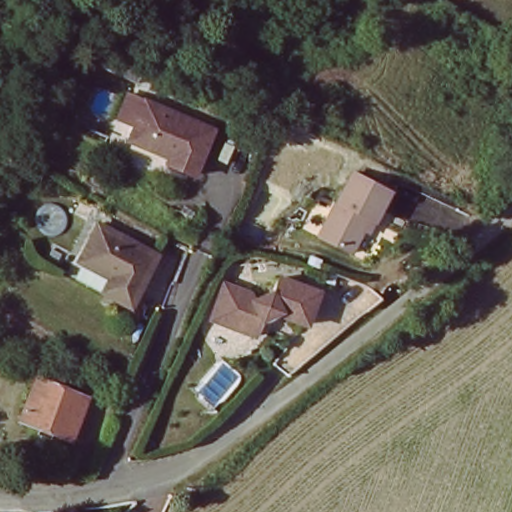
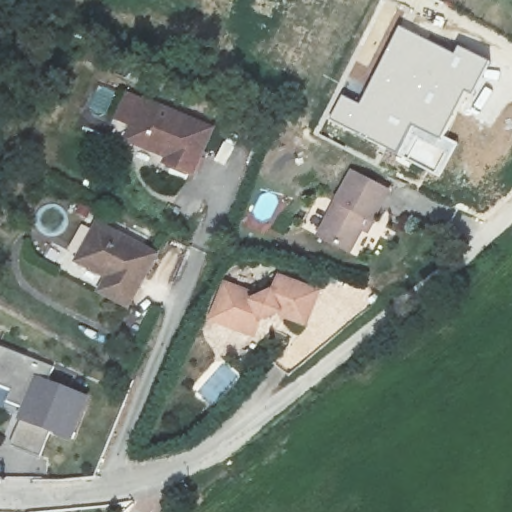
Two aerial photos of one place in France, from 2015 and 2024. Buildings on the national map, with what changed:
new [(338,91),(356,100),(364,85),(367,86),(397,25),(455,53),(458,46),(491,63),(475,100),(470,97),(468,101),(469,102),(465,110),(461,108),(447,136),(459,143),(440,181),(324,119),(338,91)]
unchanged [(157,153),(125,139),(142,100),(209,130),(189,175),(163,163),(167,152),(159,148),(157,153)]
unchanged [(348,179),(387,193),(375,224),(369,222),(356,259),(323,247),(348,179)]
unchanged [(107,274),(76,257),(97,220),(154,252),(126,303),(111,295),(99,288),(107,274)]
unchanged [(261,321),(254,337),(211,320),(224,285),(250,295),(253,302),(273,293),(278,279),(318,295),(305,326),(279,316),(278,314),(261,321)]
unchanged [(91,395),(71,441),(17,421),(34,374),(91,395)]

